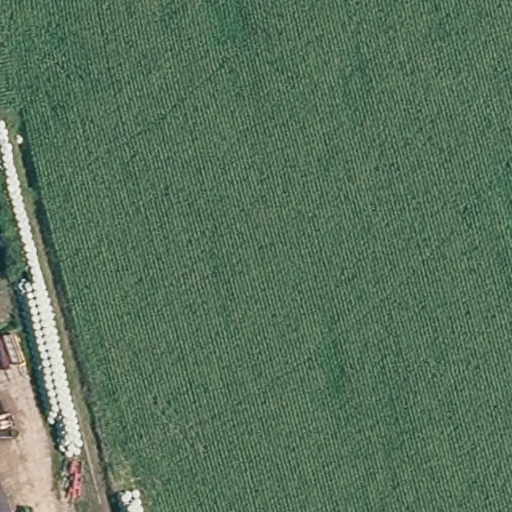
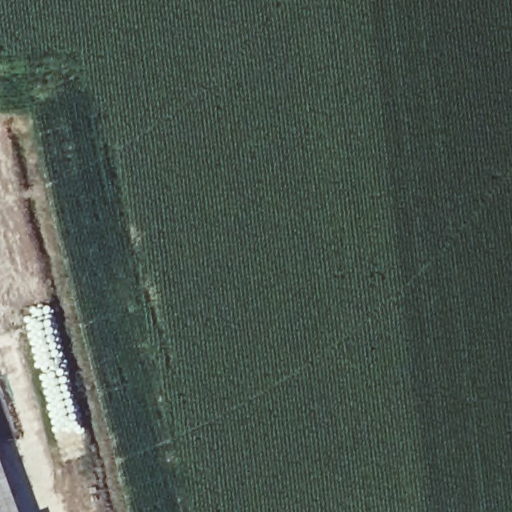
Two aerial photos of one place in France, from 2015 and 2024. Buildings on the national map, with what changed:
unchanged [(0,501),(4,512),(0,512),(0,501)]

